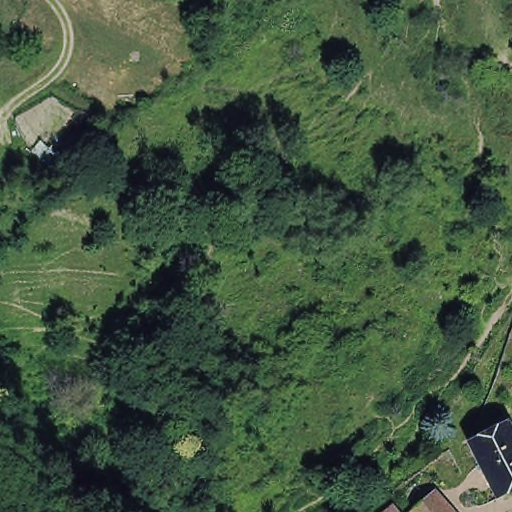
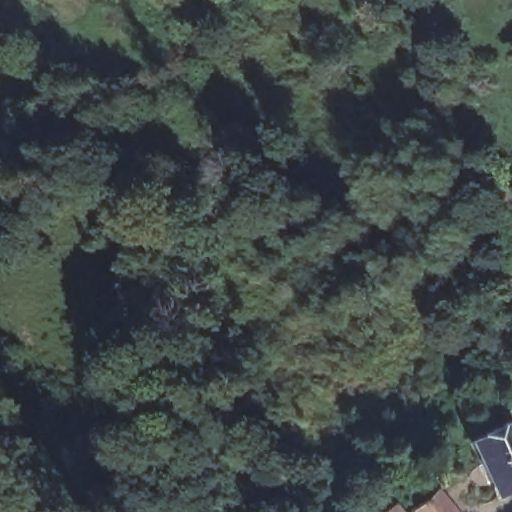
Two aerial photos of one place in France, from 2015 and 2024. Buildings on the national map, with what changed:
unchanged [(472,443),(512,422),(512,491),(502,497),(472,443)]
unchanged [(452,512),(420,512),(438,497),(452,512)]
unchanged [(391,505),(397,512),(383,512),(391,505)]

